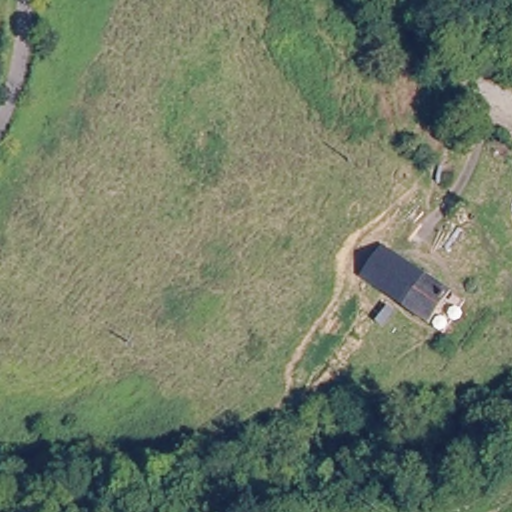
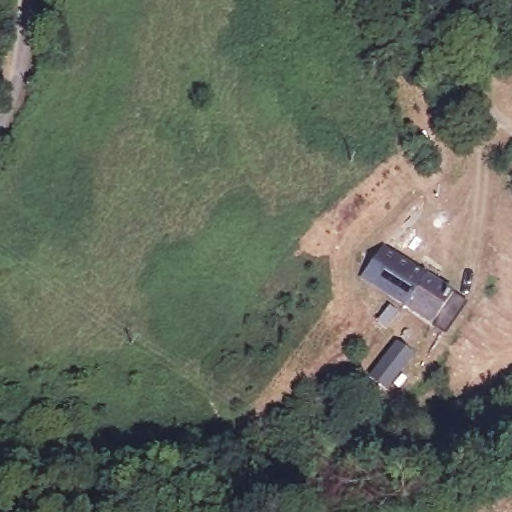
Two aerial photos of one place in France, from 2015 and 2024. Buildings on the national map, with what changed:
unchanged [(447,332),(429,320),(356,268),(379,239),(451,289),(467,299),(447,332)]

